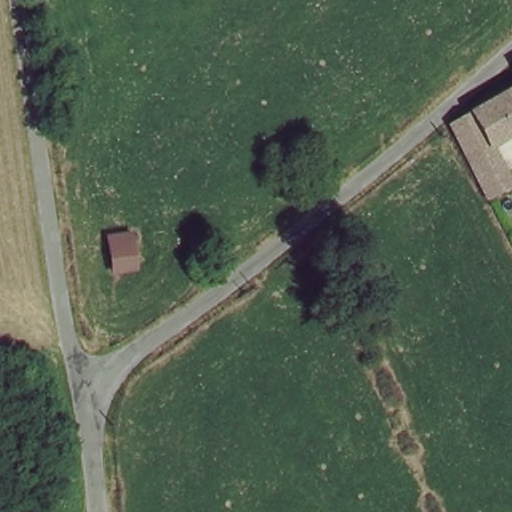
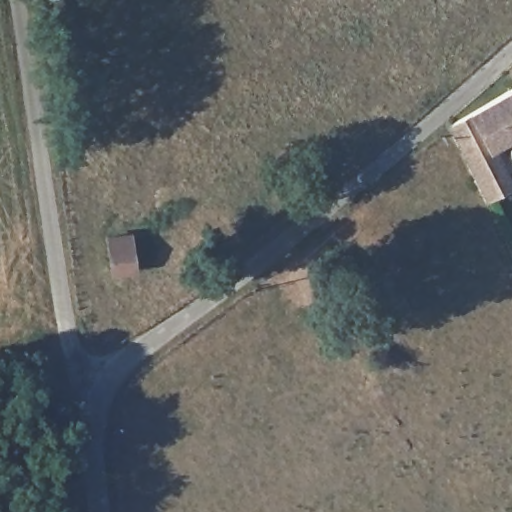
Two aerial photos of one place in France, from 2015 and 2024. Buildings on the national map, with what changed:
unchanged [(495,151),(512,186),(512,197),(486,211),(443,135),(512,98),(512,142),(495,151)]
unchanged [(131,236),(131,275),(113,276),(113,238),(131,236)]

